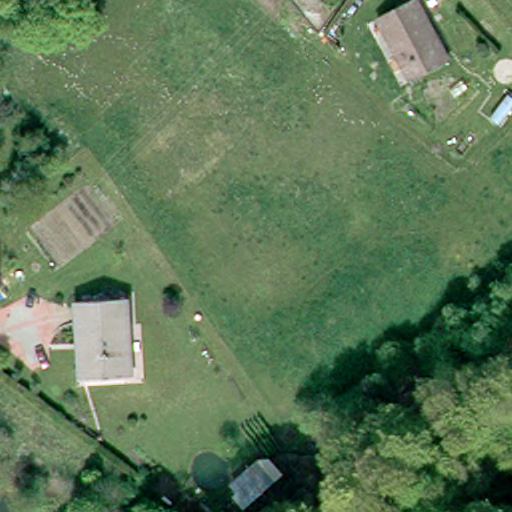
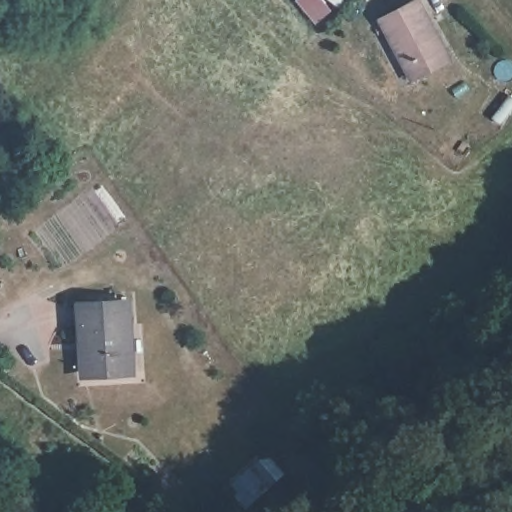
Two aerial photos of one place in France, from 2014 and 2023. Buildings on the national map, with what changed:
unchanged [(382,23),(415,1),(420,10),(451,60),(417,84),(396,47),(382,23)]
unchanged [(131,304),(131,373),(89,374),(87,336),(82,336),(82,307),(131,304)]

